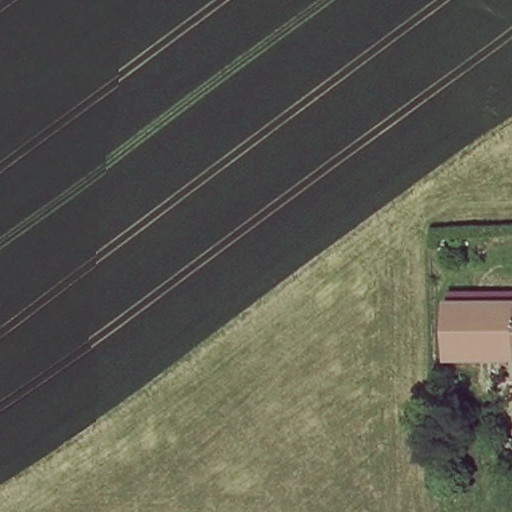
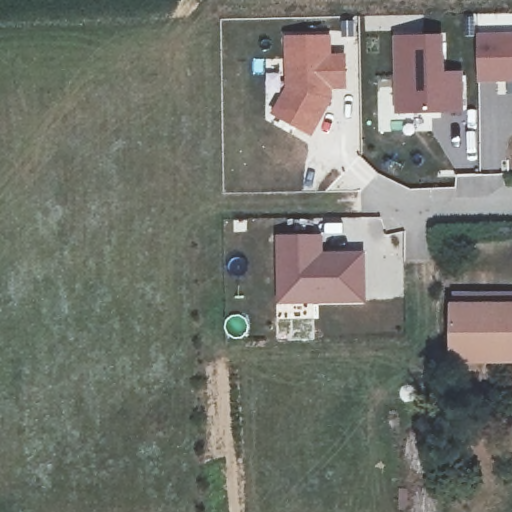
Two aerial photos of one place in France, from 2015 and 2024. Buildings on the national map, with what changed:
new [(479,34),(512,33),(512,82),(479,83),(479,34)]
new [(272,114),(287,87),(283,36),(331,35),(331,53),(346,55),(347,88),(333,90),(332,99),(312,137),(272,114)]
new [(464,111),(396,113),(393,37),(443,35),(445,72),(463,72),(464,111)]
new [(365,301),(278,304),(276,236),(323,235),(323,252),(364,252),(365,301)]
unchanged [(458,314),(512,314),(512,363),(460,361),(458,314)]

